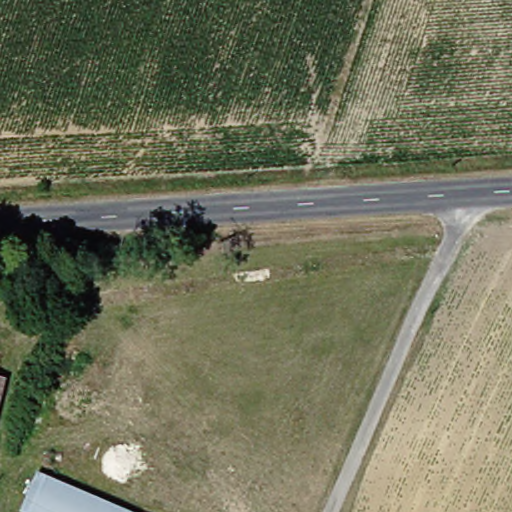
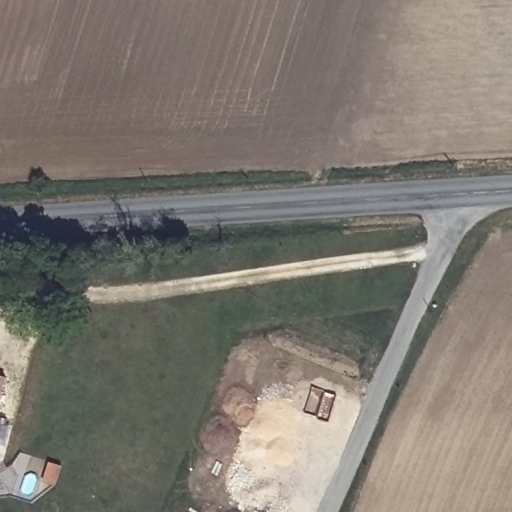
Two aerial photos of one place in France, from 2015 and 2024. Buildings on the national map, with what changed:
unchanged [(0,397),(0,373),(5,374),(0,397)]
demolished [(0,429),(0,401),(10,405),(0,429)]
demolished [(140,512),(29,512),(45,472),(140,512)]

